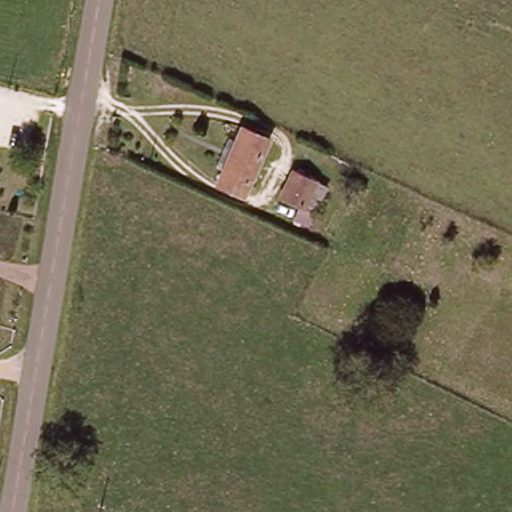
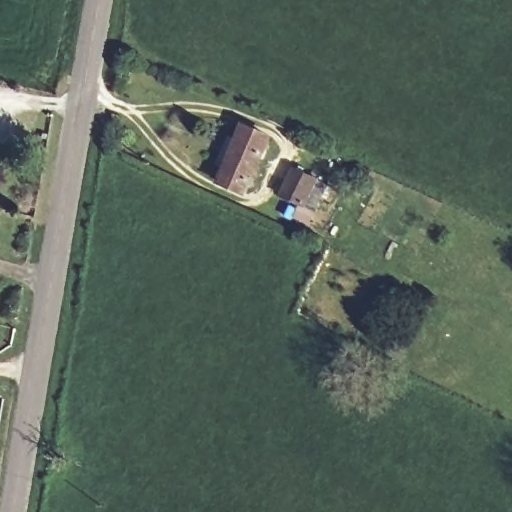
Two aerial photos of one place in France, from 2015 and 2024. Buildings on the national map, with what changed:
unchanged [(243,190),(219,178),(243,130),(267,144),(243,190)]
unchanged [(321,184),(307,209),(288,199),(302,174),(321,184)]

